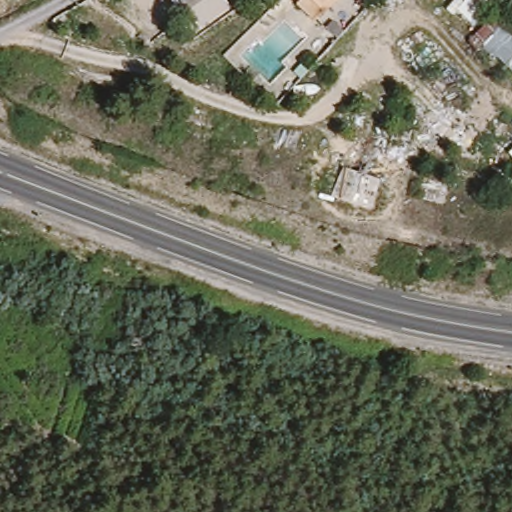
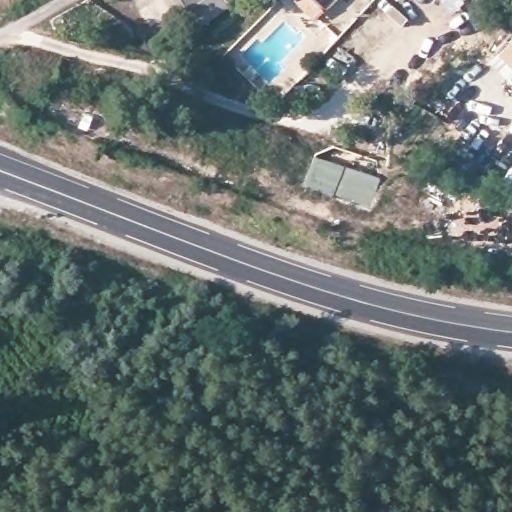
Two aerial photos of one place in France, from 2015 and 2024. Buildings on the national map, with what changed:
unchanged [(214,0),(194,15),(185,0),(214,0)]
unchanged [(300,2),(298,0),(336,0),(310,32),(289,14),(300,2)]
new [(437,0),(439,0),(438,1),(437,0)]
new [(512,71),(496,56),(512,40),(512,71)]
new [(315,157),(380,180),(369,211),(304,187),(315,157)]

